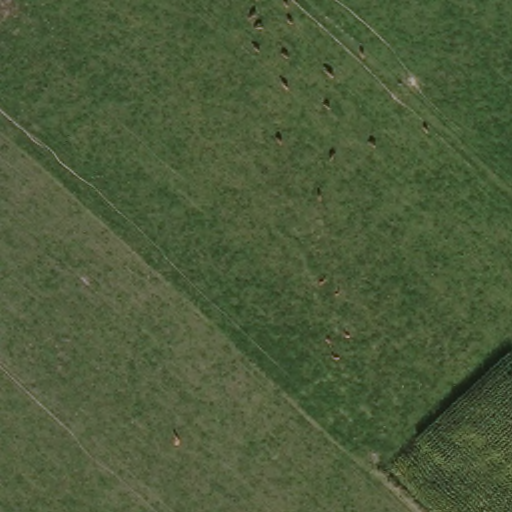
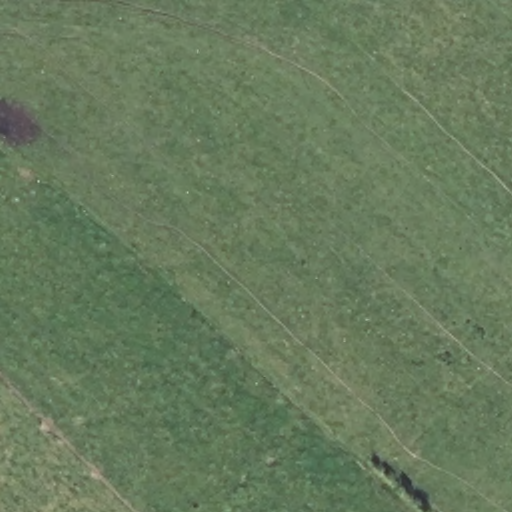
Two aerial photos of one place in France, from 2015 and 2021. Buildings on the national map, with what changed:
[]

